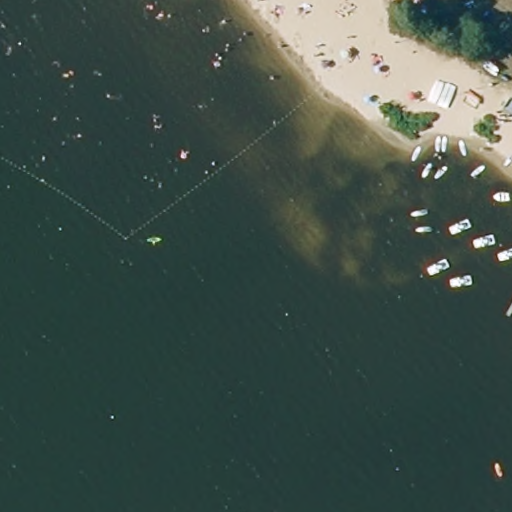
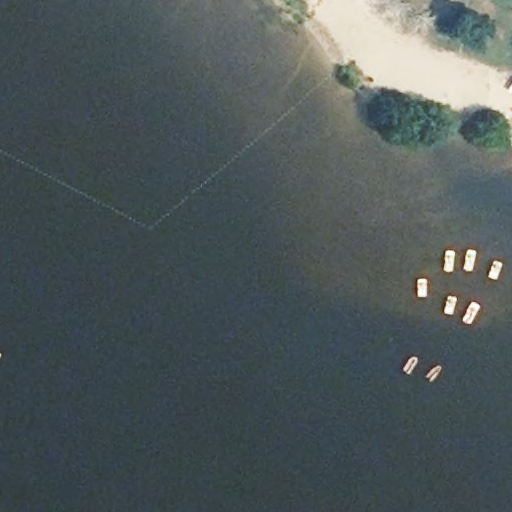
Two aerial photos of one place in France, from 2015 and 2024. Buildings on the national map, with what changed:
[]

